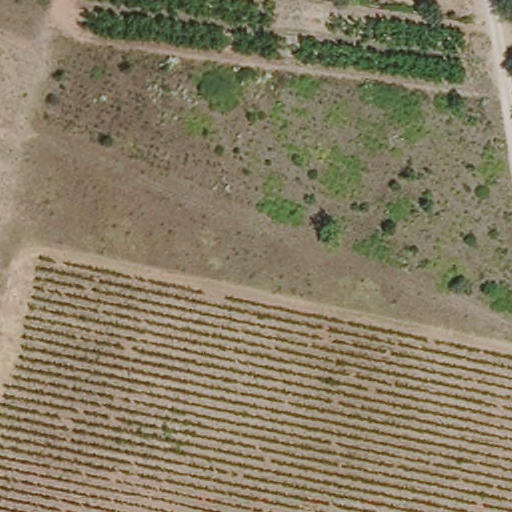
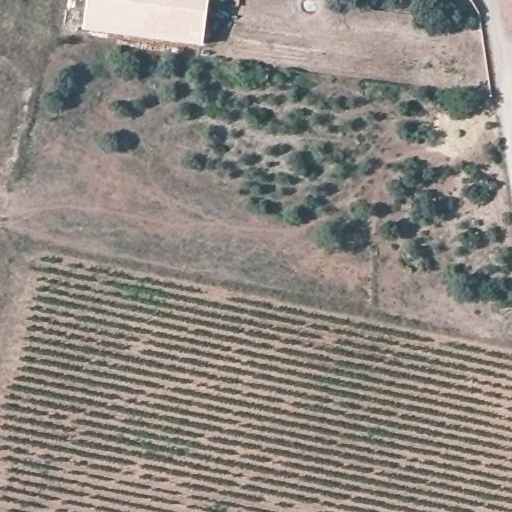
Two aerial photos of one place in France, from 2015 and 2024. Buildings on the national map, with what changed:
new [(210,0),(204,46),(85,30),(88,0),(210,0)]

